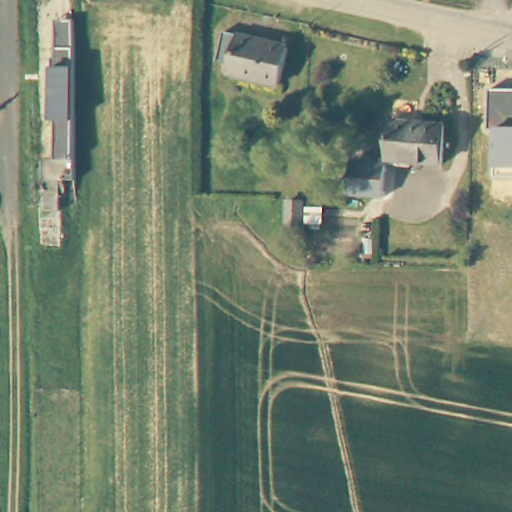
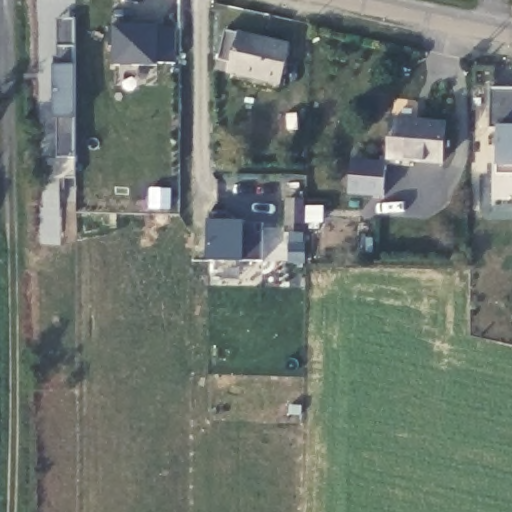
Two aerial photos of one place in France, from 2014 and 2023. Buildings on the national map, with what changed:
unchanged [(55,157),(55,117),(53,117),(52,85),(51,85),(51,55),(55,55),(55,45),(55,18),(73,18),(73,45),(74,157),(55,157)]
new [(109,25),(131,26),(131,22),(156,23),(156,28),(175,28),(174,63),(155,63),(155,65),(113,64),(114,46),(109,45),(109,25)]
unchanged [(288,45),(281,86),(226,74),(227,61),(219,60),(225,31),(288,45)]
unchanged [(495,175),(494,164),(495,126),(490,126),(489,89),(512,89),(512,177),(495,175)]
unchanged [(443,121),(441,162),(388,159),(390,119),(443,121)]
unchanged [(347,195),(348,163),(385,164),(382,199),(347,195)]
unchanged [(300,199),(298,227),(282,227),(284,198),(300,199)]
new [(206,212),(225,212),(225,222),(260,223),(259,260),(205,259),(206,212)]

